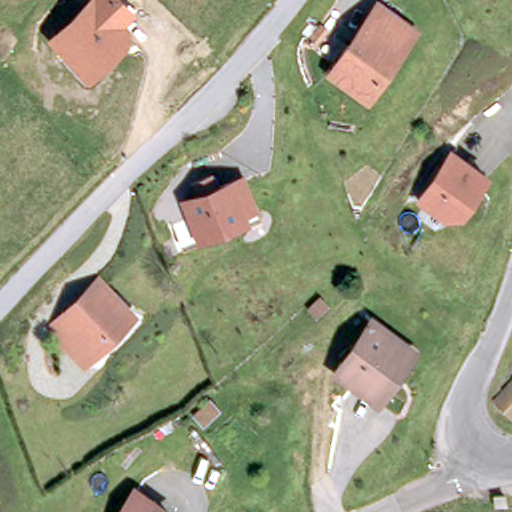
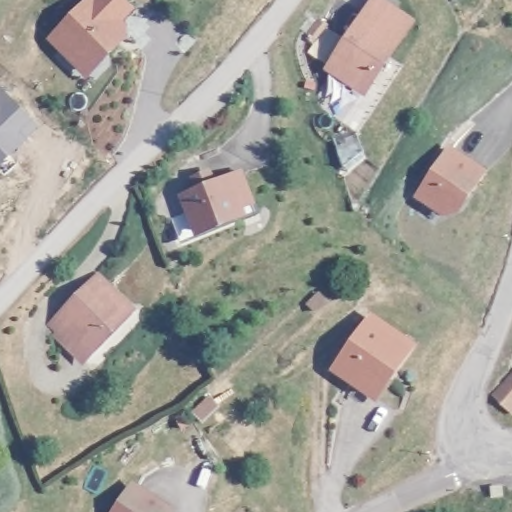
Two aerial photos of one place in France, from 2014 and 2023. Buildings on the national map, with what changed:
unchanged [(127,21),(131,36),(90,78),(49,40),(88,0),(123,0),(136,10),(127,21)]
unchanged [(370,95),(335,70),(350,46),(355,49),(386,5),(417,27),(370,95)]
new [(0,168),(0,89),(40,128),(0,168)]
unchanged [(465,214),(445,215),(422,200),(455,152),(490,174),(465,214)]
unchanged [(256,202),(241,211),(243,215),(184,246),(173,226),(192,216),(184,202),(198,193),(192,183),(206,175),(213,187),(240,172),(256,202)]
unchanged [(90,357),(72,339),(62,348),(47,332),(94,285),(128,317),(90,357)]
unchanged [(365,397),(335,371),(360,338),(370,325),(375,329),(410,352),(397,371),(373,403),(365,397)]
unchanged [(497,402),(512,388),(512,417),(497,402)]
unchanged [(218,410),(200,424),(190,412),(207,397),(218,410)]
unchanged [(140,492),(168,512),(126,512),(140,492)]

